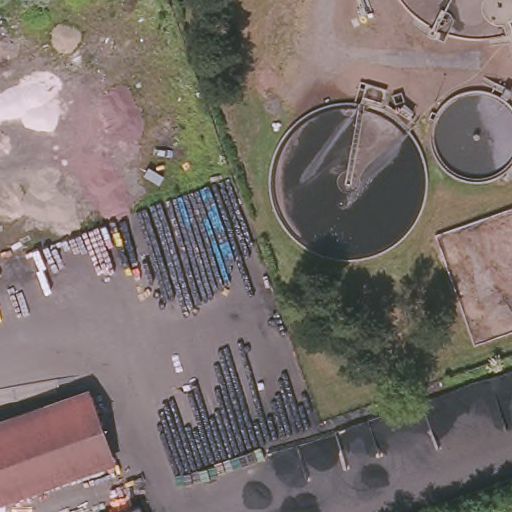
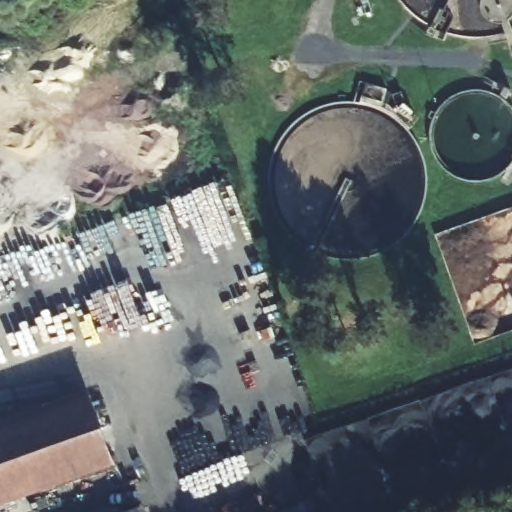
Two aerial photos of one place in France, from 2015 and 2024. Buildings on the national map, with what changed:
unchanged [(105,458),(0,494),(0,426),(82,397),(105,458)]
unchanged [(135,505),(138,512),(115,512),(135,505)]

